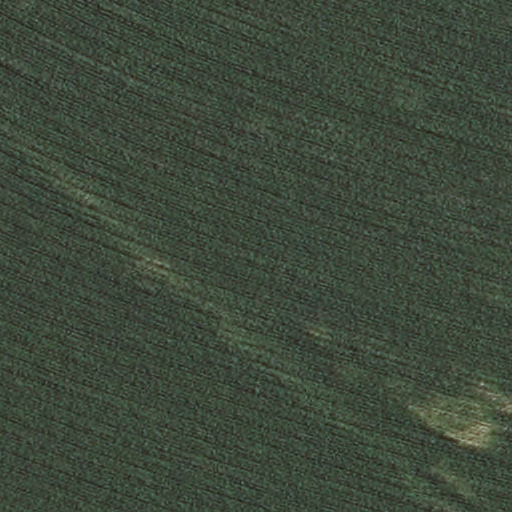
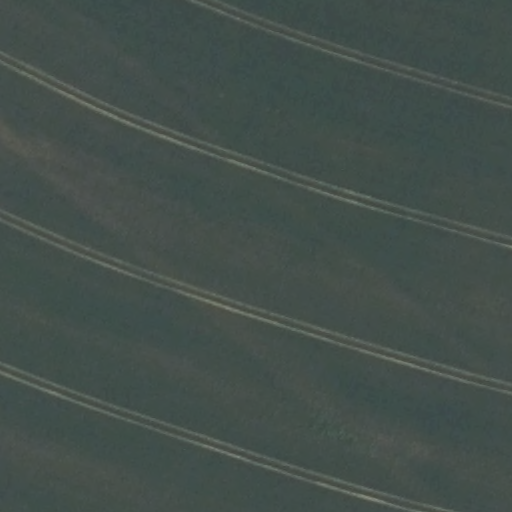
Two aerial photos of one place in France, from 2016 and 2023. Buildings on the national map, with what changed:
[]

